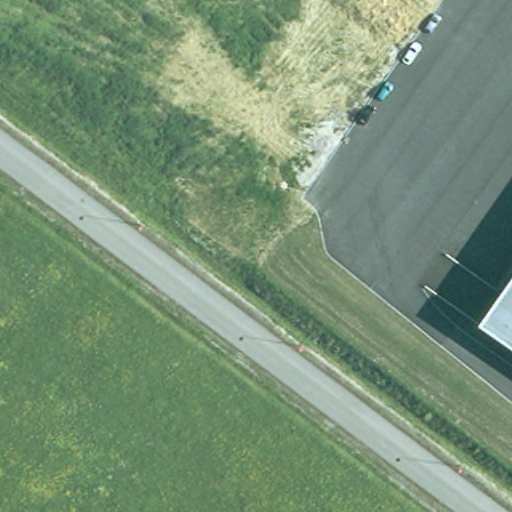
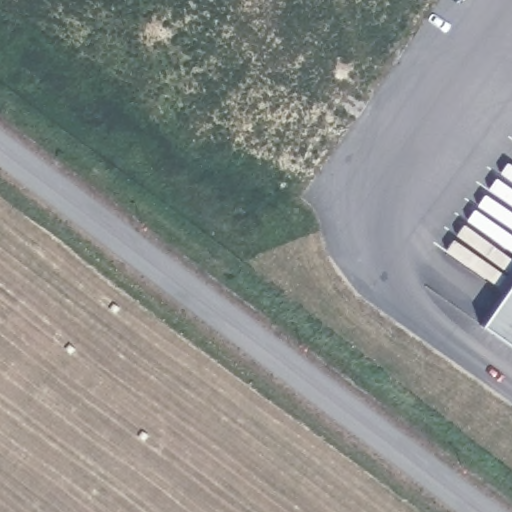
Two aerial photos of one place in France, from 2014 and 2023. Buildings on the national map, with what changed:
unchanged [(512,278),(512,347),(479,325),(512,278)]

